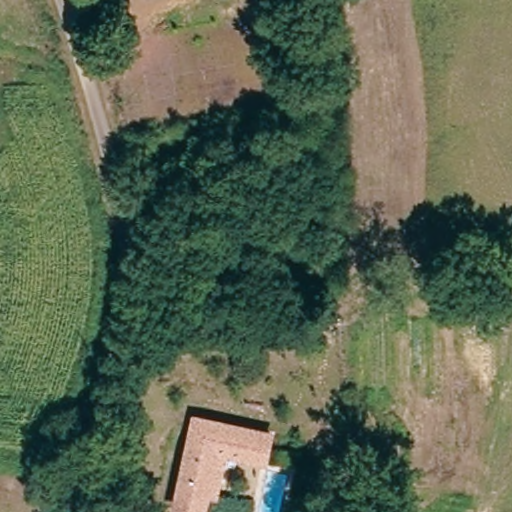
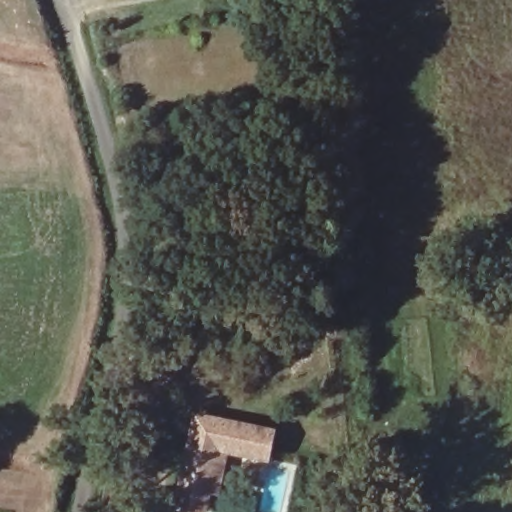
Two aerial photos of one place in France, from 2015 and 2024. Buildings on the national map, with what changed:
unchanged [(271,439),(267,460),(224,450),(217,481),(209,479),(202,512),(190,512),(173,508),(196,417),(272,437),(271,439)]

